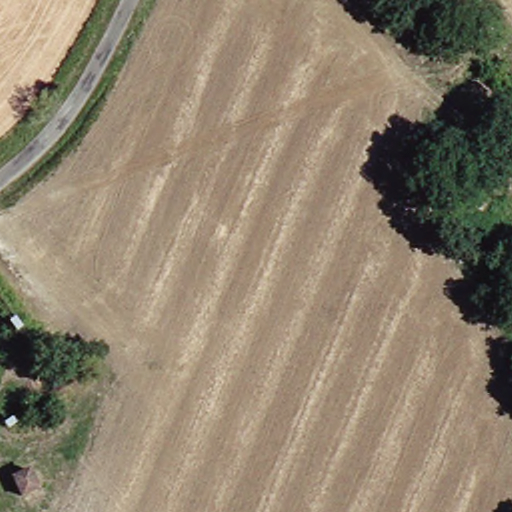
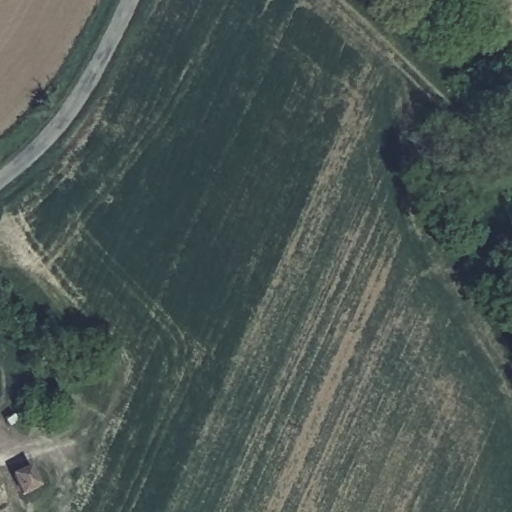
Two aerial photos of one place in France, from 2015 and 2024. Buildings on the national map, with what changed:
unchanged [(17,473),(30,492),(14,502),(1,484),(17,473)]

